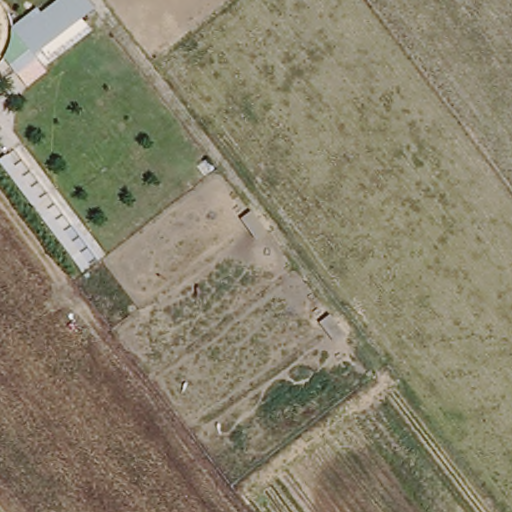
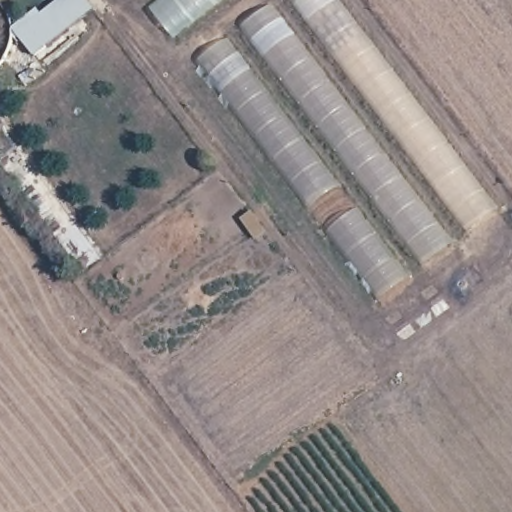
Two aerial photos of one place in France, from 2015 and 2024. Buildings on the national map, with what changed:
unchanged [(4,60),(9,51),(12,39),(12,28),(38,9),(41,14),(60,0),(88,0),(96,10),(36,59),(47,74),(29,88),(4,60)]
new [(175,45),(146,8),(156,0),(232,0),(175,45)]
new [(495,212),(466,232),(290,0),(338,0),(495,212)]
new [(242,25),(272,2),(452,242),(424,266),(242,25)]
new [(410,276),(381,298),(199,61),(229,39),(410,276)]

